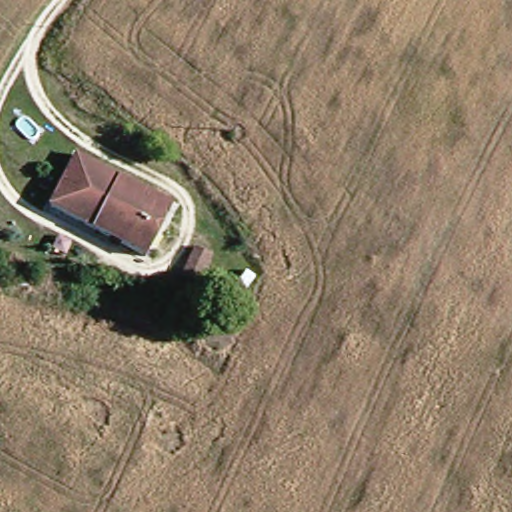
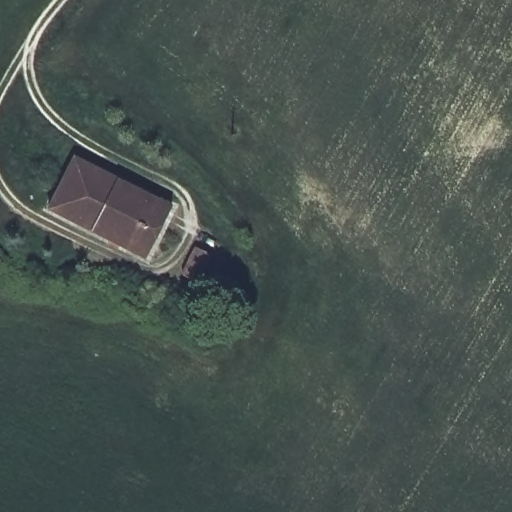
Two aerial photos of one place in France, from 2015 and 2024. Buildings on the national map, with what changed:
unchanged [(63,155),(168,210),(156,236),(64,188),(51,179),(63,155)]
unchanged [(156,236),(144,262),(50,214),(64,188),(156,236)]
unchanged [(197,282),(181,274),(195,248),(210,255),(197,282)]

